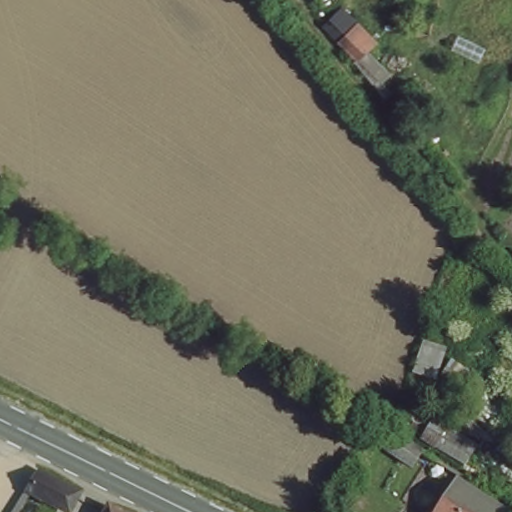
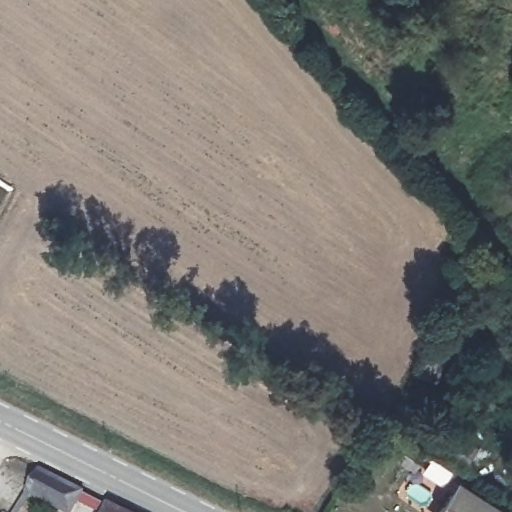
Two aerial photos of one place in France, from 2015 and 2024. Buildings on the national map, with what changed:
unchanged [(394,457),(405,438),(430,454),(420,472),(394,457)]
unchanged [(67,512),(31,491),(43,469),(80,490),(67,512)]
unchanged [(500,512),(439,512),(457,485),(500,512)]
unchanged [(115,512),(110,512),(111,510),(115,512)]

